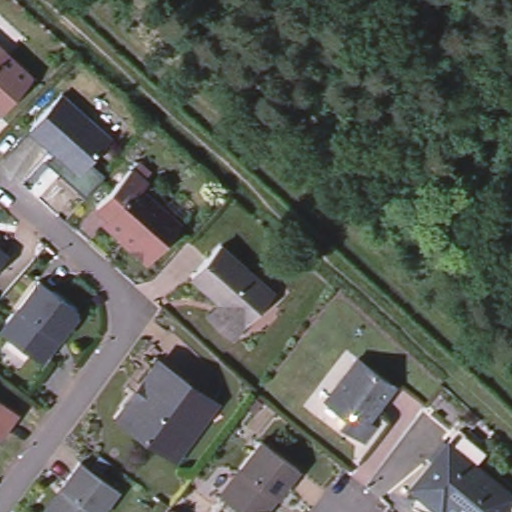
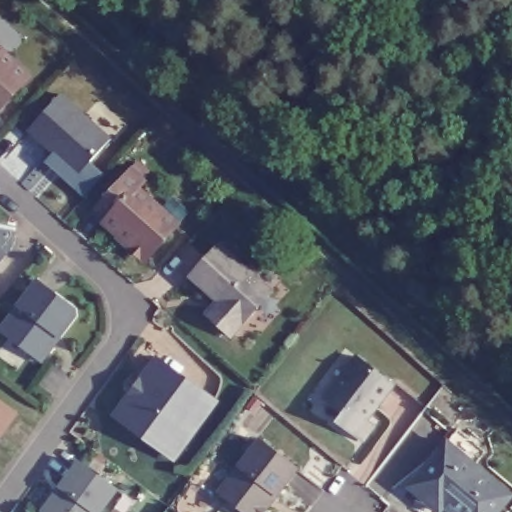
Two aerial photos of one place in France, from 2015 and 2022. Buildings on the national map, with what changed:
unchanged [(27,75),(0,105),(0,50),(27,75)]
unchanged [(27,130),(59,95),(81,115),(78,119),(89,128),(95,127),(102,134),(102,139),(105,142),(77,174),(65,163),(62,166),(49,154),(52,151),(27,130)]
unchanged [(121,232),(108,221),(110,219),(96,207),(113,188),(130,169),(145,182),(139,189),(140,190),(162,210),(161,212),(176,226),(164,240),(149,257),(140,257),(130,247),(120,237),(117,236),(121,232)]
unchanged [(222,297),(195,272),(225,240),(277,287),(270,295),(235,332),(218,317),(210,311),(222,297)]
unchanged [(4,255),(0,259),(0,251),(4,255)]
unchanged [(40,360),(0,329),(0,328),(37,279),(74,308),(75,315),(58,337),(52,346),(40,360)]
unchanged [(387,382),(360,416),(368,422),(355,437),(353,435),(331,417),(337,410),(319,396),(350,354),(387,382)]
unchanged [(192,436),(175,458),(119,415),(132,397),(137,397),(145,387),(145,379),(160,360),(205,395),(216,403),(192,436)]
unchanged [(15,413),(0,433),(0,403),(15,413)]
unchanged [(266,508),(263,512),(243,512),(219,493),(259,441),(296,468),(275,497),(266,508)]
unchanged [(473,467),(509,497),(497,512),(449,512),(442,507),(438,512),(409,487),(445,444),(473,467)]
unchanged [(59,487),(79,462),(116,492),(100,512),(41,512),(59,487)]

